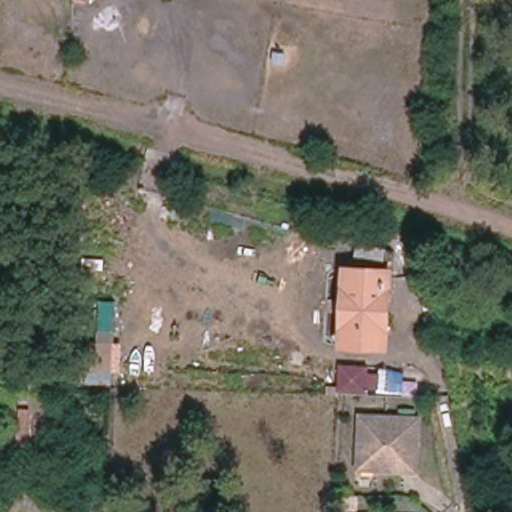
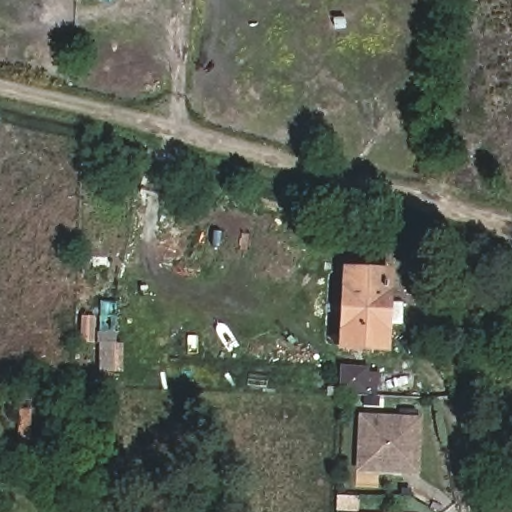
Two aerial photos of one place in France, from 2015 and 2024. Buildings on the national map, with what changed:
unchanged [(384,347),(343,346),(345,271),(388,272),(384,347)]
unchanged [(418,471),(360,469),(362,416),(419,418),(418,471)]

